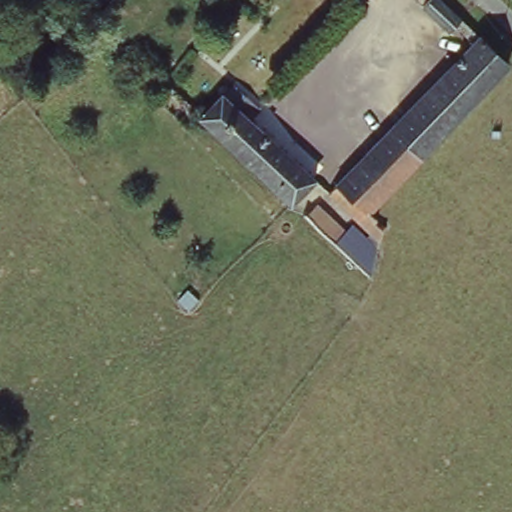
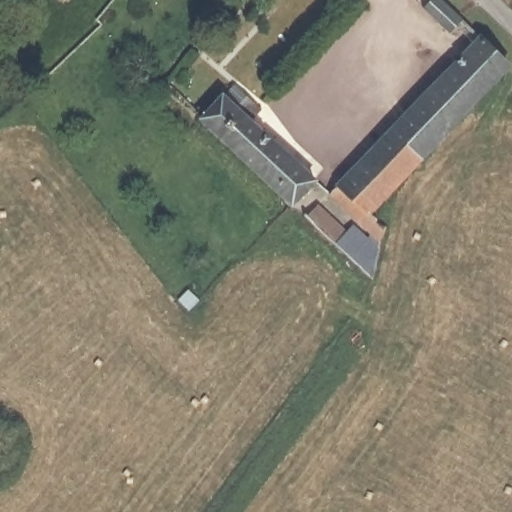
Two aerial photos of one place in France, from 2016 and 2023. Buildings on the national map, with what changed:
unchanged [(450,31),(417,3),(421,0),(446,0),(464,16),(450,31)]
unchanged [(337,185),(491,13),(512,31),(512,48),(377,199),(396,216),(388,234),(337,185)]
unchanged [(209,81),(247,115),(319,180),(293,209),(185,107),(209,81)]
unchanged [(239,104),(250,92),(259,101),(249,113),(239,104)]
unchanged [(317,205),(326,196),(349,220),(340,230),(317,205)]
unchanged [(374,266),(340,230),(357,214),(384,242),(374,266)]

